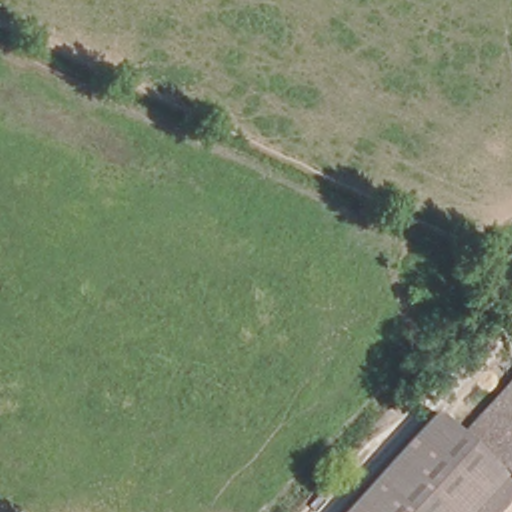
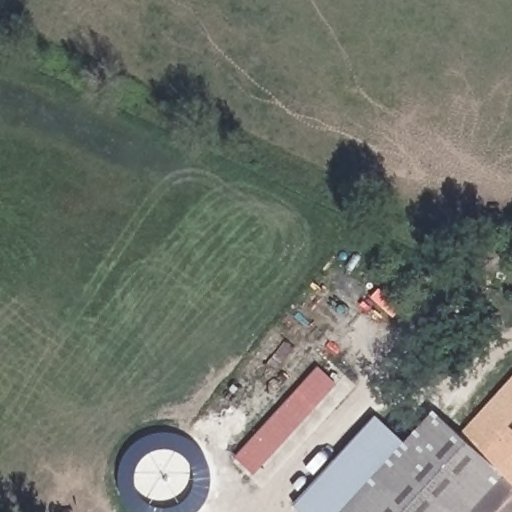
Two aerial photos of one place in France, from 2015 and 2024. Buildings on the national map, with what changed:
new [(236,458),(319,367),(339,385),(256,476),(236,458)]
unchanged [(448,396),(479,424),(512,389),(512,512),(342,512),(448,396)]
new [(405,443),(342,512),(301,512),(294,505),(376,415),(405,443)]
new [(135,444),(143,438),(152,434),(162,433),(171,433),(181,435),(190,439),(197,445),(204,452),(208,461),(211,470),(212,480),(211,489),(207,499),(202,507),(197,512),(133,512),(127,505),(123,497),(120,487),(119,478),(120,468),(124,459),(129,451),(135,444)]

